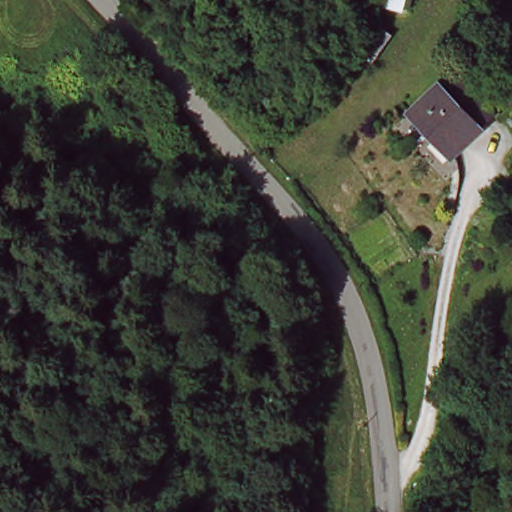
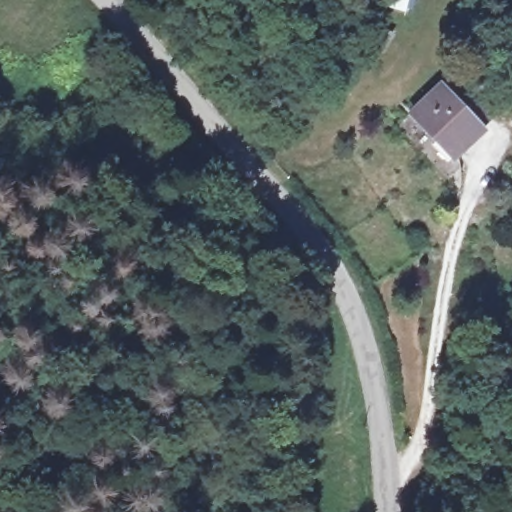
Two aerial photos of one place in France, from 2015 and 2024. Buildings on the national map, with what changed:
unchanged [(477,134),(452,155),(439,137),(434,142),(412,111),(425,100),(439,88),(477,134)]

